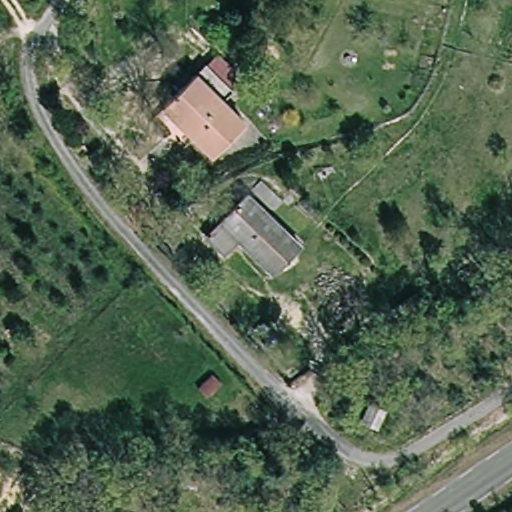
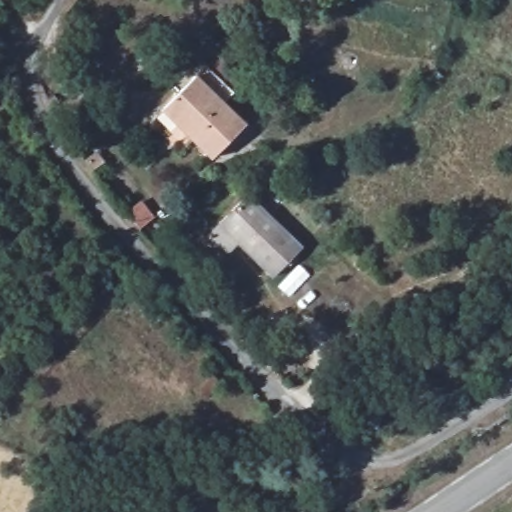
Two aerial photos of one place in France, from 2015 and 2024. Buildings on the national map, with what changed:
unchanged [(234,101),(222,111),(242,134),(207,164),(161,112),(208,71),(234,101)]
unchanged [(219,253),(201,237),(244,195),(297,247),(268,275),(233,240),(219,253)]

